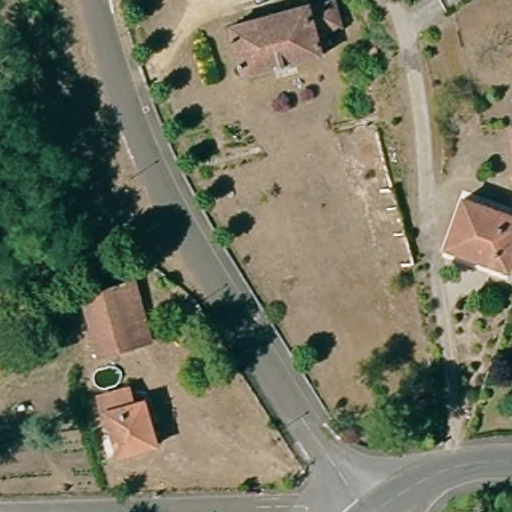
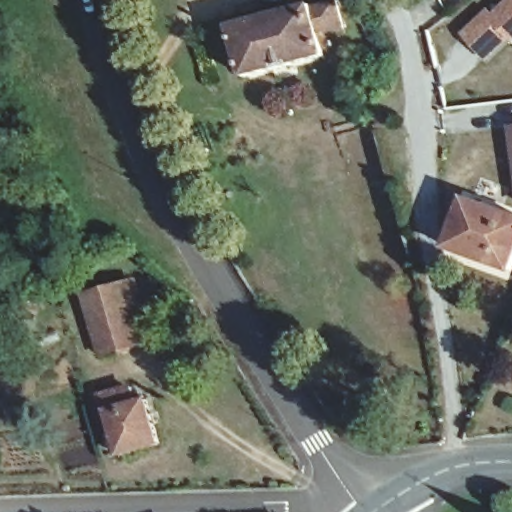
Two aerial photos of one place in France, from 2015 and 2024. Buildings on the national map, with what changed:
new [(460,31),(486,8),(490,12),(504,0),(512,0),(512,37),(486,61),(460,31)]
unchanged [(343,28),(319,35),(324,54),(247,75),(234,28),(311,6),(311,9),(337,3),(343,28)]
unchanged [(467,199),(512,215),(512,271),(450,248),(467,199)]
unchanged [(155,341),(135,347),(120,286),(139,281),(155,341)]
unchanged [(135,347),(104,355),(87,295),(120,286),(135,347)]
unchanged [(162,444),(123,455),(107,394),(133,387),(138,403),(150,400),(162,444)]

